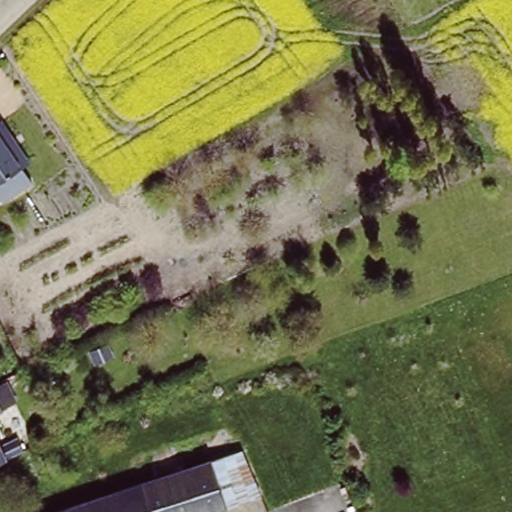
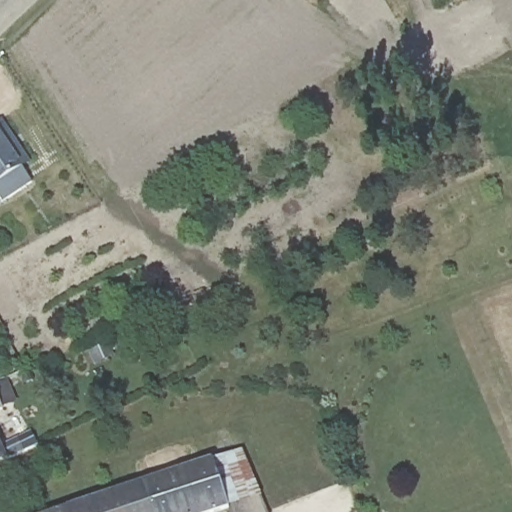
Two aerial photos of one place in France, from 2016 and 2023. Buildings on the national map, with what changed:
unchanged [(0,197),(0,135),(4,134),(29,182),(0,197)]
unchanged [(8,409),(0,393),(0,384),(2,384),(11,379),(31,370),(44,395),(8,409)]
unchanged [(0,412),(0,393),(8,409),(0,412)]
unchanged [(29,436),(39,456),(9,469),(0,473),(0,433),(7,448),(29,436)]
unchanged [(262,495),(211,512),(43,512),(249,446),(262,495)]
unchanged [(268,512),(267,510),(275,506),(278,512),(268,512)]

